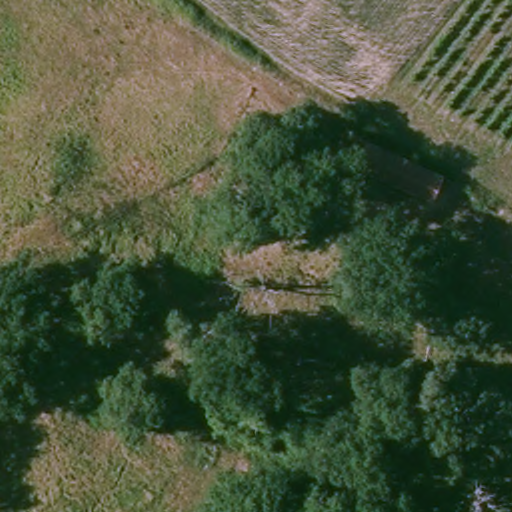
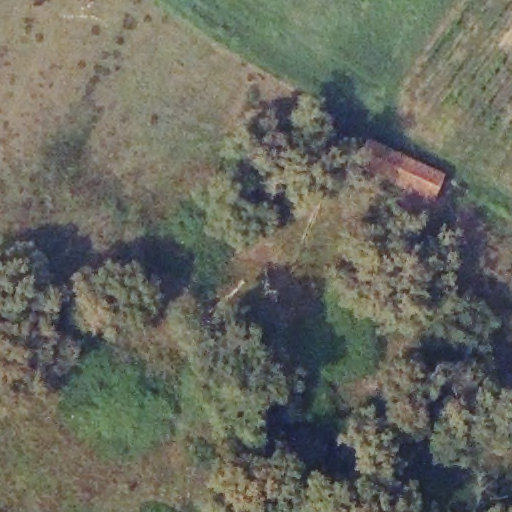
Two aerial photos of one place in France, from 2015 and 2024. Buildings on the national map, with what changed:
unchanged [(432,196),(397,179),(367,164),(376,146),(407,161),(439,179),(432,196)]

